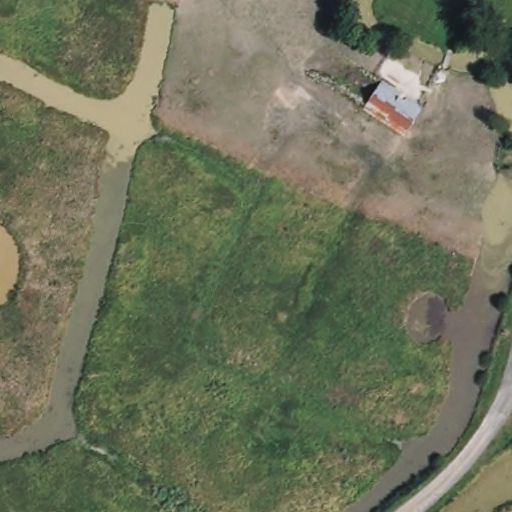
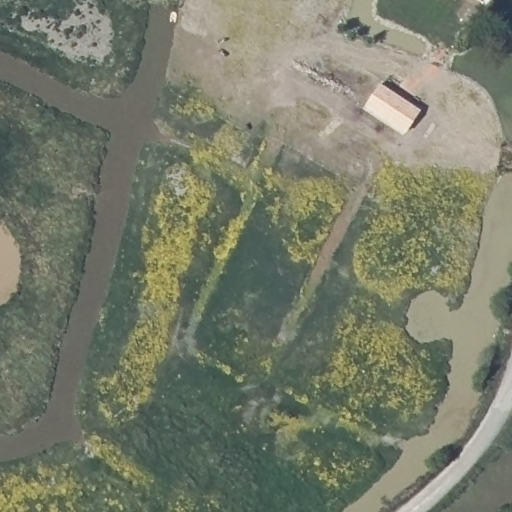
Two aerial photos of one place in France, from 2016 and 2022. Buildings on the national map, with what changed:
unchanged [(384,82),(424,107),(406,137),(363,111),(384,82)]

